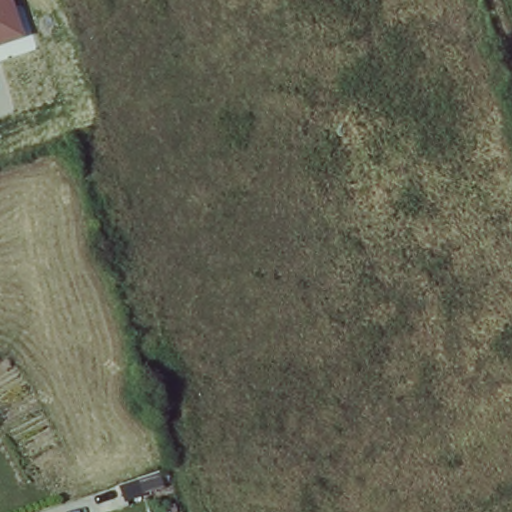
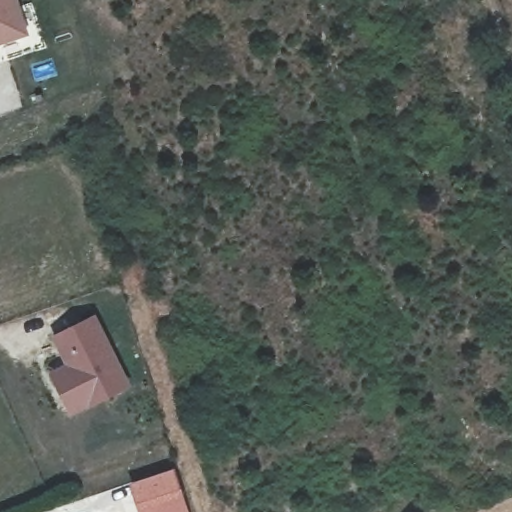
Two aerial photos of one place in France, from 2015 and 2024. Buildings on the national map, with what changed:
unchanged [(18,0),(30,35),(0,46),(0,0),(18,0)]
new [(71,417),(48,372),(64,363),(51,335),(96,314),(130,386),(71,417)]
new [(175,469),(189,512),(139,512),(130,483),(175,469)]

